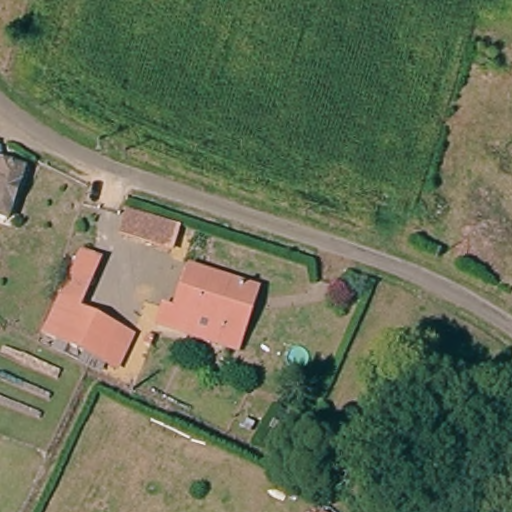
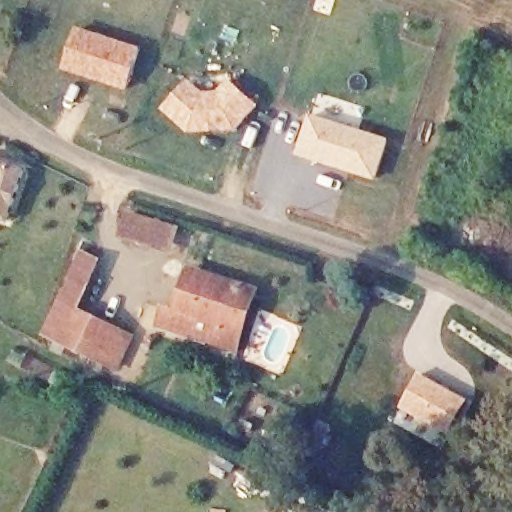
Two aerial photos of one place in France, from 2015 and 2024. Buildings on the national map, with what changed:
new [(77,27),(141,47),(127,91),(62,69),(77,27)]
new [(203,94),(219,93),(228,80),(255,105),(233,130),(187,132),(164,109),(188,82),(203,94)]
new [(390,139),(377,181),(296,156),(308,114),(390,139)]
unchanged [(20,168),(3,215),(0,221),(0,161),(20,168)]
unchanged [(126,213),(180,227),(172,253),(120,238),(126,213)]
unchanged [(79,249),(105,259),(81,311),(72,306),(57,340),(42,333),(79,249)]
unchanged [(156,323),(163,303),(176,308),(192,264),(261,290),(240,355),(156,323)]
unchanged [(57,340),(72,306),(81,311),(113,325),(137,335),(123,371),(100,359),(57,340)]
demolished [(403,328),(396,351),(355,335),(364,313),(403,328)]
new [(469,400),(449,436),(400,408),(421,374),(469,400)]

